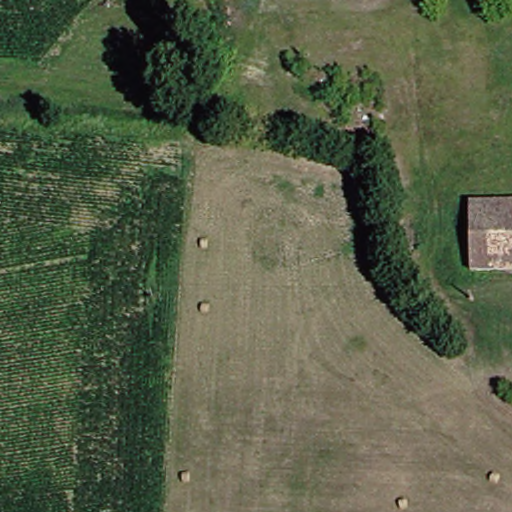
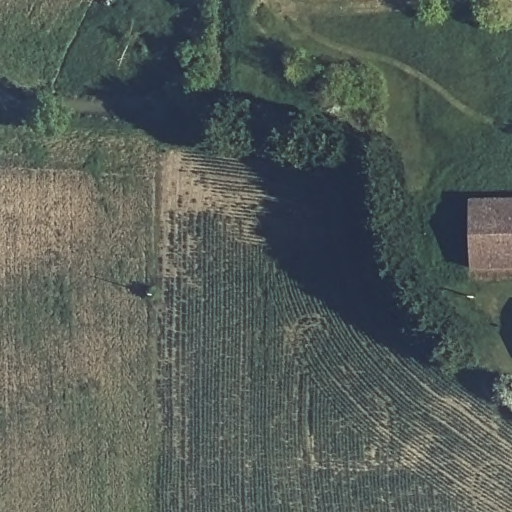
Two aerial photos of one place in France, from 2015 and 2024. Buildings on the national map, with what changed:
unchanged [(512,204),(512,271),(463,272),(460,205),(512,204)]

